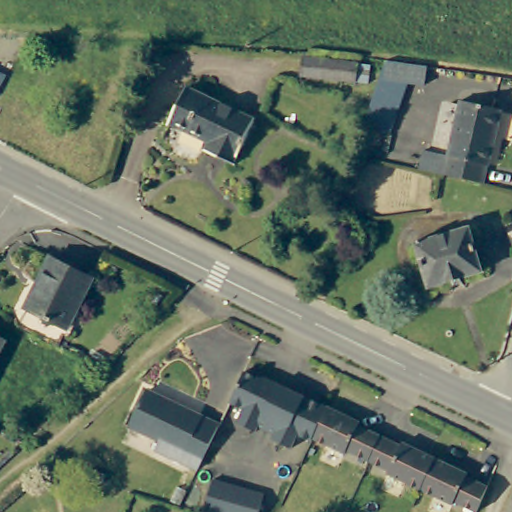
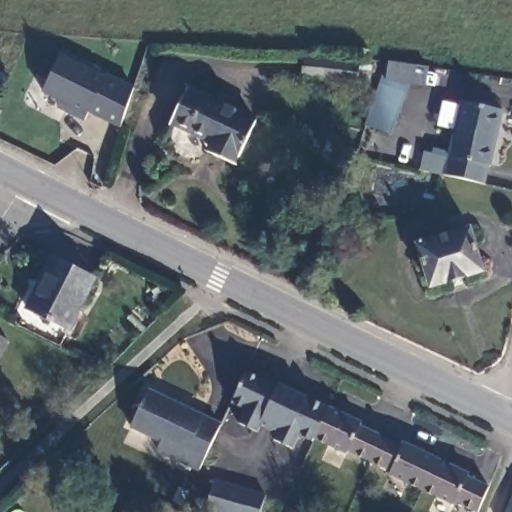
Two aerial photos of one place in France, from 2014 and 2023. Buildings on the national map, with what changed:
new [(89,114),(84,121),(57,108),(59,102),(39,92),(58,49),(138,86),(124,129),(89,114)]
unchanged [(350,79),(315,75),(318,58),(352,61),(350,79)]
unchanged [(383,61),(397,65),(379,121),(364,116),(383,61)]
unchanged [(232,162),(209,153),(214,143),(165,123),(179,88),(251,119),(232,162)]
unchanged [(454,106),(493,114),(481,170),(479,169),(477,182),(439,174),(454,106)]
unchanged [(467,225),(480,267),(428,282),(416,240),(467,225)]
unchanged [(36,295),(51,265),(86,282),(63,332),(21,312),(30,292),(36,295)]
unchanged [(0,348),(0,338),(4,339),(0,348)]
unchanged [(292,448),(273,439),(275,433),(259,425),(257,429),(238,421),(245,407),(232,399),(246,369),(262,376),(265,376),(329,404),(324,417),(314,439),(313,441),(299,434),(292,448)]
unchanged [(204,453),(162,434),(158,443),(127,429),(148,383),(222,417),(204,453)]
unchanged [(367,427),(408,447),(409,444),(472,474),(470,479),(489,488),(482,506),(481,508),(479,512),(470,512),(460,508),(459,510),(394,479),(396,474),(354,454),(353,457),(314,439),(324,417),(329,404),(369,423),(367,427)]
unchanged [(200,512),(211,478),(260,495),(255,512),(201,512),(200,512)]
unchanged [(512,494),(512,512),(505,512),(512,494)]

